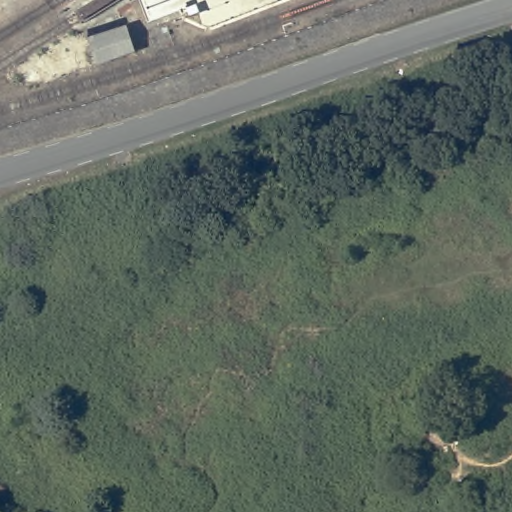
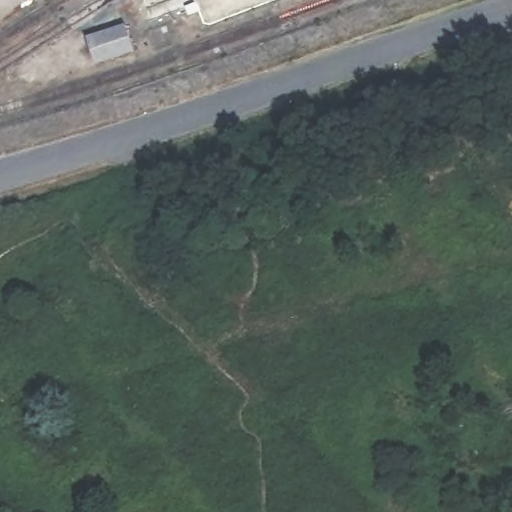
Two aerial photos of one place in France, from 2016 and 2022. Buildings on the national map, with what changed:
unchanged [(96,65),(87,41),(125,29),(134,53),(96,65)]

